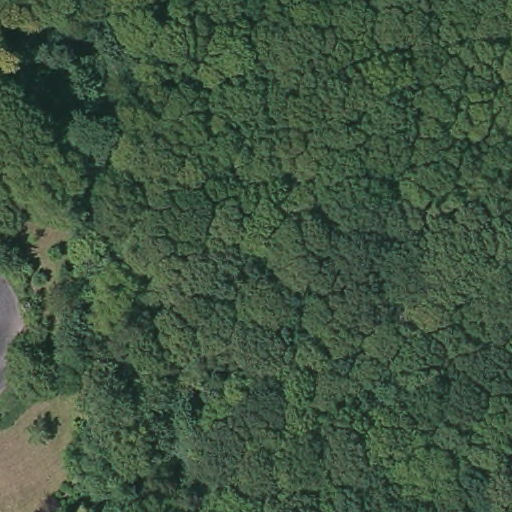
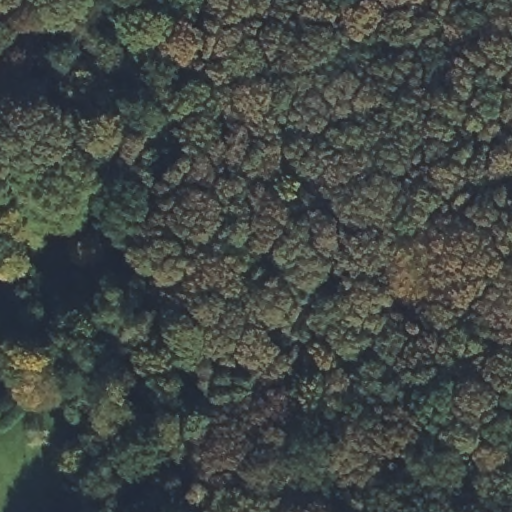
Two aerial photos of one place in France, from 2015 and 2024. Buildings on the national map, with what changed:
[]

